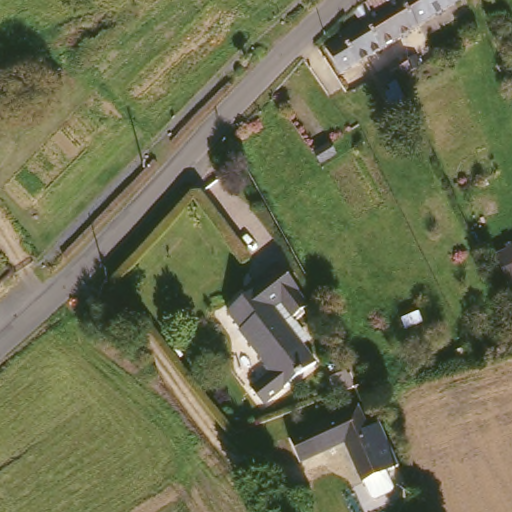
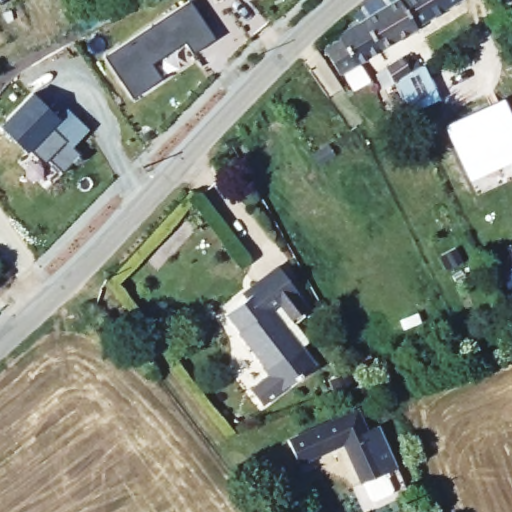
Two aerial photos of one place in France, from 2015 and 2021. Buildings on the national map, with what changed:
new [(194,0),(217,35),(194,50),(186,39),(154,59),(163,74),(133,94),(106,52),(187,0),(194,0)]
unchanged [(395,0),(413,30),(380,51),(360,16),(356,19),(351,9),(360,0),(395,0)]
unchanged [(395,0),(460,0),(413,30),(395,0)]
unchanged [(380,51),(357,66),(338,78),(320,46),(356,19),(360,16),(380,51)]
unchanged [(395,58),(413,46),(417,53),(425,46),(432,58),(418,68),(406,76),(416,100),(402,108),(392,88),(383,65),(395,58)]
new [(66,108),(89,129),(74,146),(82,155),(66,172),(51,159),(46,165),(32,150),(25,155),(0,129),(0,125),(32,93),(55,117),(66,108)]
new [(488,112),(490,116),(503,109),(512,128),(512,175),(502,155),(470,170),(452,129),(488,112)]
new [(458,250),(463,263),(444,270),(439,256),(458,250)]
unchanged [(512,256),(512,288),(511,288),(500,260),(512,256)]
unchanged [(237,335),(242,330),(227,311),(255,287),(253,281),(263,272),(272,264),(305,303),(292,315),(278,298),(269,307),(307,359),(308,362),(277,389),(262,403),(247,384),(264,370),(237,335)]
unchanged [(323,419),(345,409),(354,405),(381,471),(358,483),(343,444),(300,466),(287,436),(323,419)]

